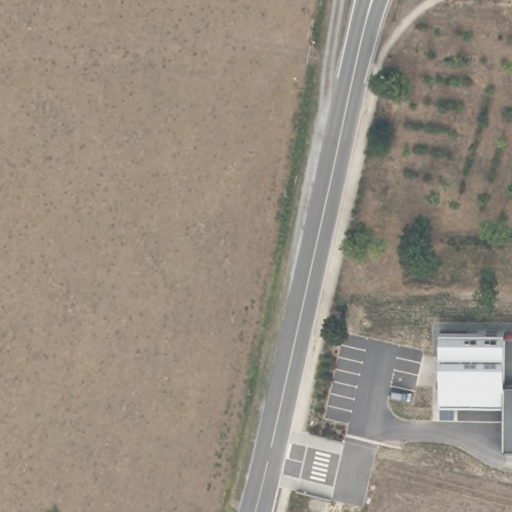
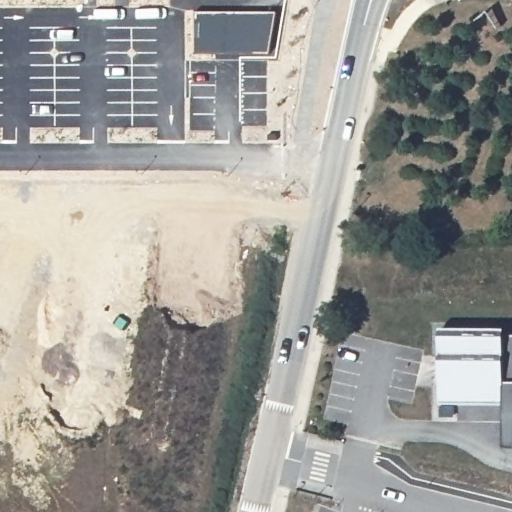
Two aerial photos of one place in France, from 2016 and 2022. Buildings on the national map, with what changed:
new [(273,14),(268,54),(195,54),(195,15),(273,14)]
unchanged [(505,329),(504,335),(512,335),(512,447),(503,446),(503,403),(439,403),(439,329),(505,329)]

